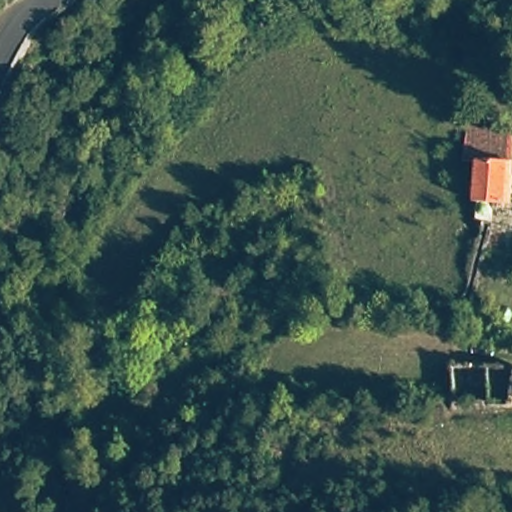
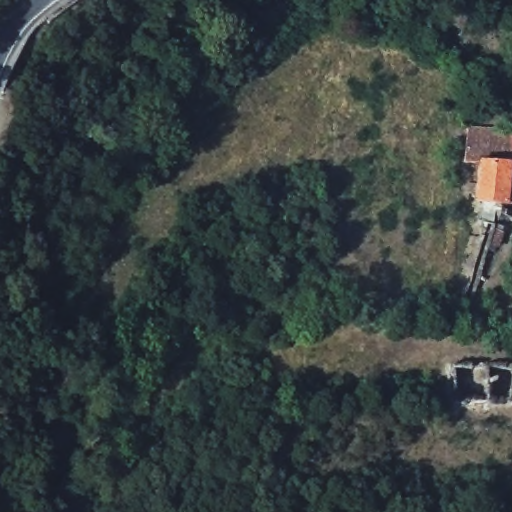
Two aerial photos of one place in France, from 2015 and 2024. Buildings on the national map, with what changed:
unchanged [(512,130),(512,186),(510,205),(475,202),(479,160),(465,160),(468,126),(512,130)]

